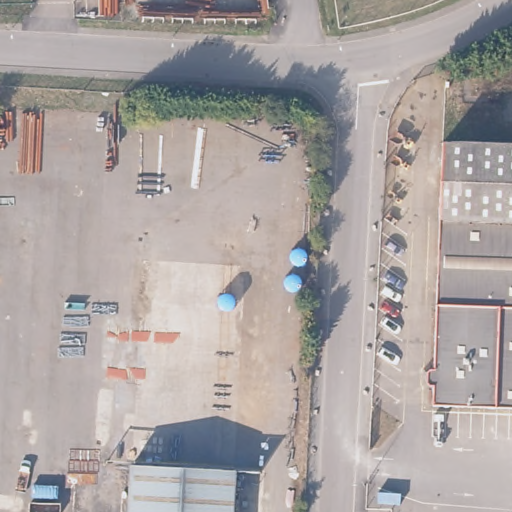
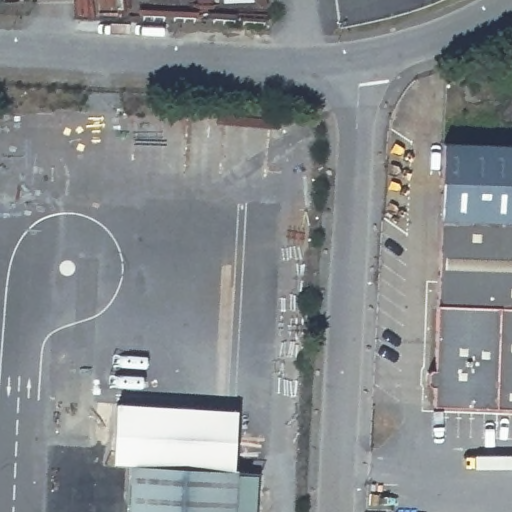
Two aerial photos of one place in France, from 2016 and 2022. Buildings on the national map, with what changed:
unchanged [(512,407),(434,404),(435,387),(428,385),(429,365),(435,365),(444,139),(512,142),(512,407)]
new [(115,402),(239,408),(235,462),(132,457),(132,464),(112,462),(115,402)]
unchanged [(237,462),(234,512),(129,512),(132,457),(237,462)]

